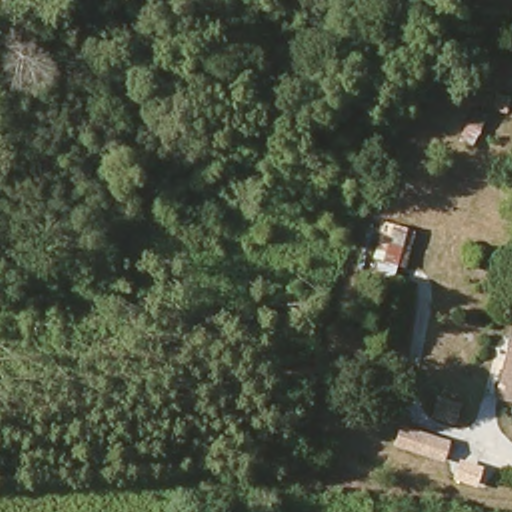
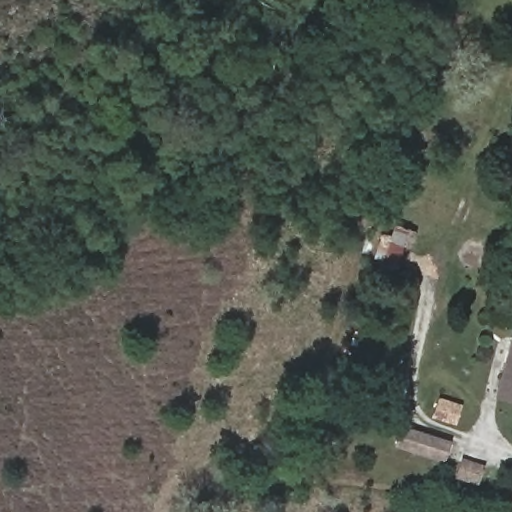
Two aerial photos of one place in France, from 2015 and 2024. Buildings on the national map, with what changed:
unchanged [(398,263),(394,279),(376,273),(390,222),(418,229),(409,264),(398,263)]
unchanged [(488,247),(481,272),(463,267),(470,242),(488,247)]
unchanged [(507,399),(512,375),(512,400),(507,399)]
unchanged [(463,403),(457,423),(434,415),(441,396),(463,403)]

